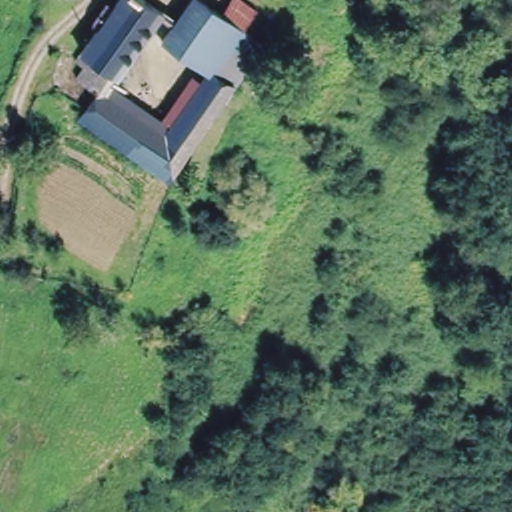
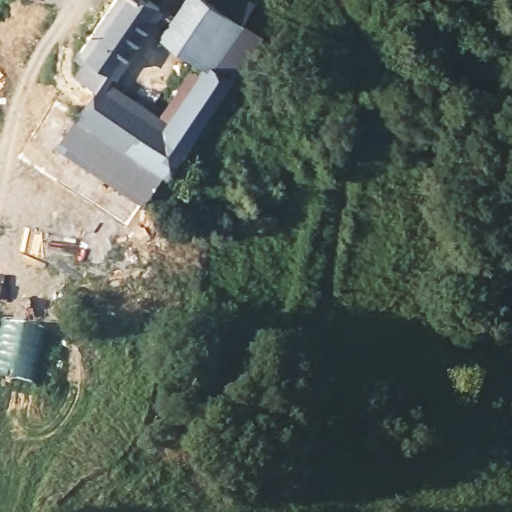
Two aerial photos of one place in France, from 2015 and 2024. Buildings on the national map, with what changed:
unchanged [(74,79),(82,65),(71,58),(92,27),(84,22),(97,2),(105,7),(110,0),(144,0),(160,8),(109,79),(170,114),(203,56),(161,32),(171,14),(178,0),(191,0),(210,9),(215,0),(247,0),(236,21),(254,29),(167,169),(74,115),(80,105),(90,91),(74,79)]
new [(167,169),(143,204),(54,146),(74,115),(167,169)]
new [(35,385),(0,377),(0,322),(47,332),(35,385)]

